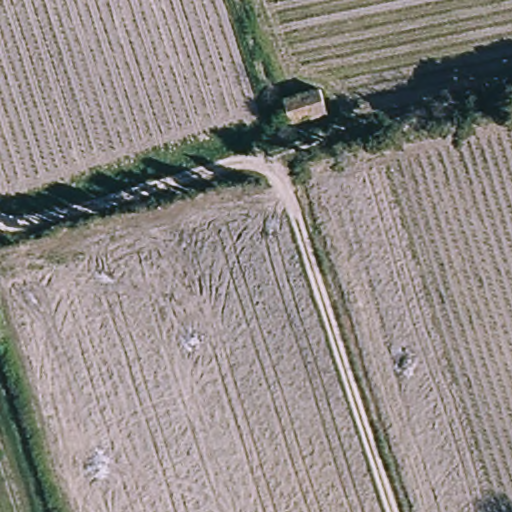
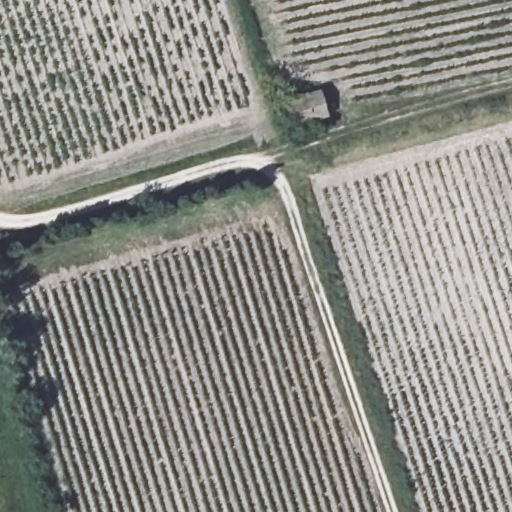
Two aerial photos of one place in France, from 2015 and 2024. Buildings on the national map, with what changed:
unchanged [(268,122),(259,98),(309,86),(314,112),(268,122)]

